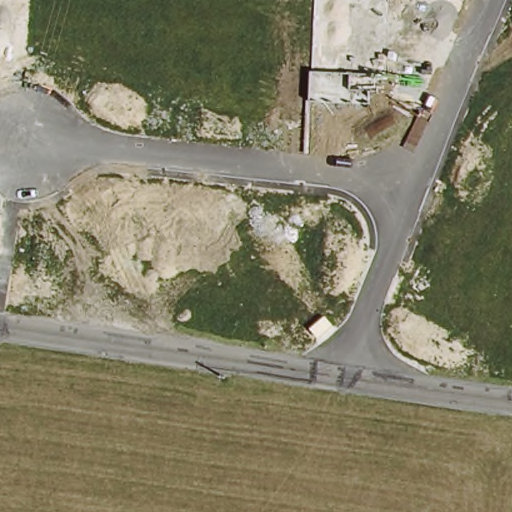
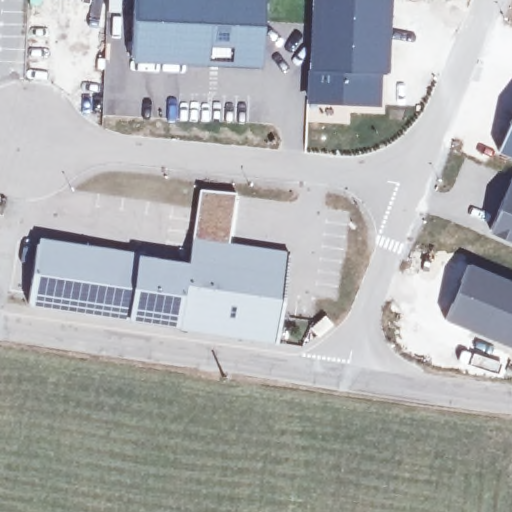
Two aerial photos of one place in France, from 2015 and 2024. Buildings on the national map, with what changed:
new [(265,0),(262,68),(132,63),(135,0),(265,0)]
unchanged [(307,104),(312,0),(387,0),(384,79),(376,78),(375,94),(375,107),(367,107),(307,104)]
new [(498,152),(512,119),(512,158),(498,152)]
unchanged [(510,181),(512,182),(512,243),(487,233),(510,181)]
new [(278,345),(179,328),(128,321),(28,306),(40,239),(140,253),(138,256),(190,263),(193,239),(288,252),(278,345)]
new [(467,262),(512,281),(512,348),(443,320),(467,262)]

